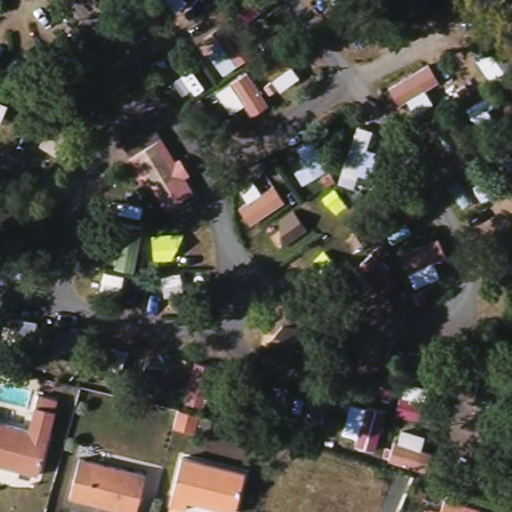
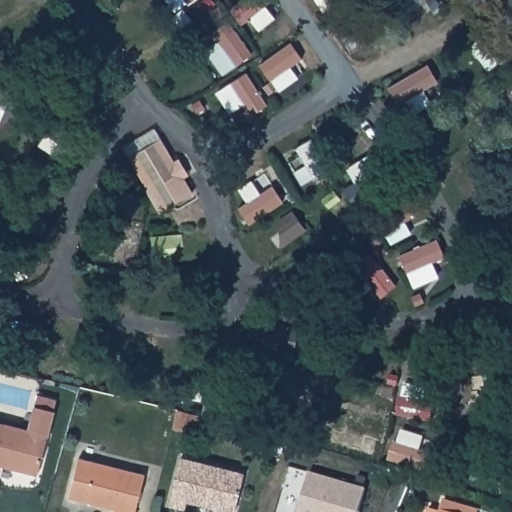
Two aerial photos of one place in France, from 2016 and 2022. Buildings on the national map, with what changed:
unchanged [(177,195),(149,146),(145,140),(161,131),(165,137),(168,143),(174,140),(186,161),(180,164),(193,185),(197,192),(181,201),(177,195)]
unchanged [(145,172),(136,156),(145,150),(154,166),(145,172)]
unchanged [(170,207),(153,179),(160,175),(176,204),(170,207)]
unchanged [(0,422),(29,429),(35,405),(37,396),(56,401),(54,411),(38,474),(0,464),(0,422)]
unchanged [(210,432),(198,429),(178,423),(182,406),(202,411),(200,419),(213,422),(210,432)]
unchanged [(145,474),(134,512),(114,512),(116,508),(69,496),(79,457),(145,474)]
unchanged [(185,510),(169,505),(181,457),(244,474),(234,512),(230,512),(187,501),(185,510)]
new [(367,489),(360,512),(298,512),(310,472),(367,489)]
unchanged [(476,512),(444,512),(447,503),(476,512)]
unchanged [(439,512),(432,512),(433,510),(439,512)]

